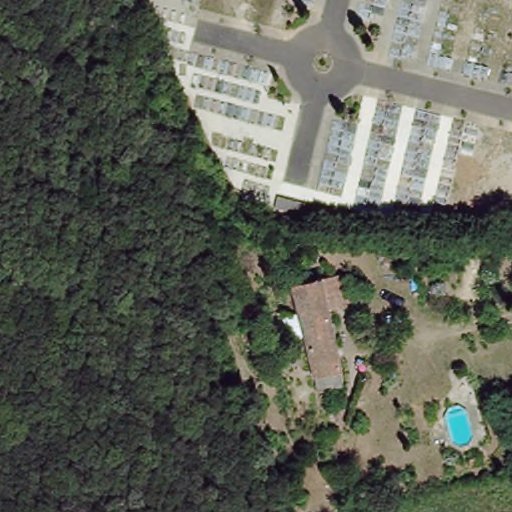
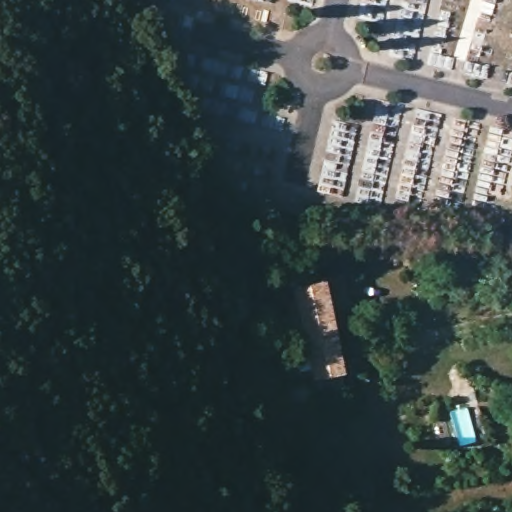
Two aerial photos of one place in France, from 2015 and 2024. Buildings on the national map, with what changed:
unchanged [(295,290),(324,284),(345,278),(352,308),(332,313),(336,332),(345,377),(347,390),(320,394),(317,382),(295,290)]

